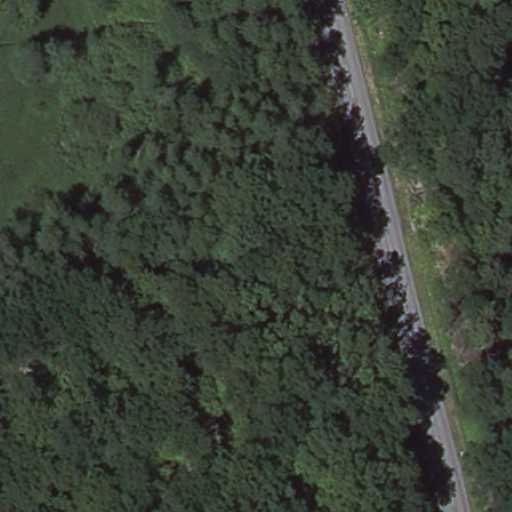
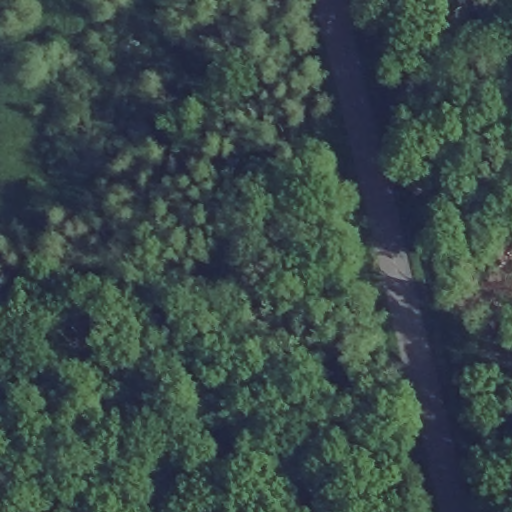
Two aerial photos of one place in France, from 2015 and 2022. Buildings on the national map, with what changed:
unchanged [(451,136),(458,170),(415,177),(402,142),(451,136)]
unchanged [(275,185),(287,220),(242,231),(235,200),(275,185)]

